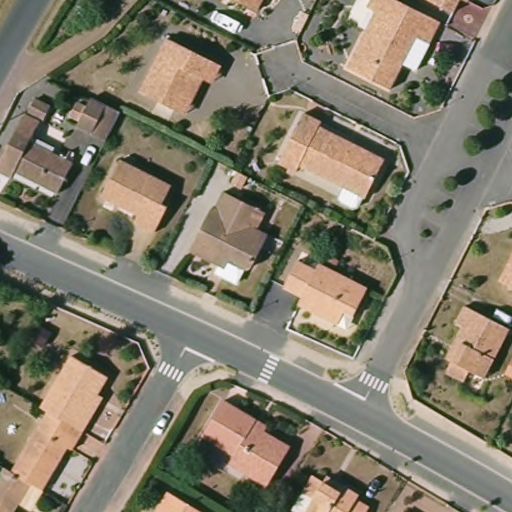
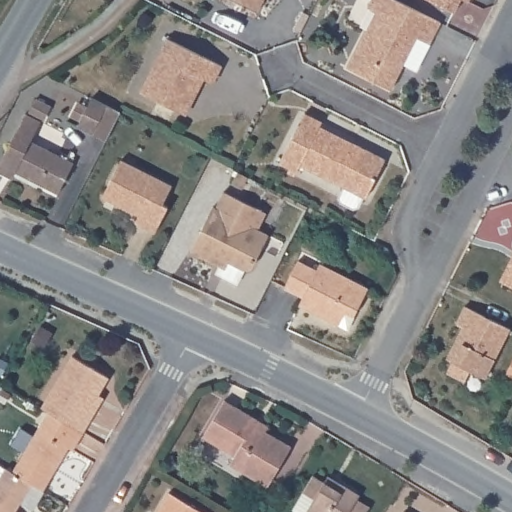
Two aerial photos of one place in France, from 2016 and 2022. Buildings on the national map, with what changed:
unchanged [(257,10),(237,0),(262,0),(257,10)]
unchanged [(403,60),(391,86),(348,65),(378,8),(368,2),(369,0),(404,0),(411,3),(442,20),(431,42),(419,69),(403,60)]
unchanged [(453,8),(434,0),(457,0),(453,8)]
unchanged [(168,105),(140,91),(168,35),(213,57),(225,63),(215,83),(203,77),(200,75),(181,112),(168,105)]
unchanged [(122,114),(107,142),(76,126),(90,98),(122,114)]
unchanged [(325,119),(321,125),(387,159),(366,198),(302,164),(298,171),(282,163),(309,112),(325,119)]
unchanged [(5,153),(25,117),(39,125),(29,143),(72,165),(55,198),(11,175),(20,161),(5,153)]
unchanged [(167,189),(158,208),(166,212),(152,238),(130,227),(132,220),(100,203),(118,164),(167,189)]
unchanged [(190,253),(205,221),(210,223),(225,194),(266,213),(258,230),(266,234),(260,247),(250,267),(250,268),(249,269),(247,270),(246,271),(245,271),(242,272),(236,284),(216,273),(219,267),(190,253)]
unchanged [(296,263),(313,272),(317,264),(365,288),(350,316),(342,313),(335,326),(295,306),(300,296),(283,287),(296,263)]
unchanged [(512,270),(512,290),(504,285),(512,270)]
unchanged [(457,338),(465,324),(458,321),(467,303),(511,327),(486,376),(471,367),(465,379),(448,370),(454,359),(448,356),(457,338)]
unchanged [(69,357),(103,377),(82,412),(87,416),(77,433),(44,412),(38,409),(69,357)]
unchanged [(262,490),(223,466),(228,457),(197,439),(220,400),(255,421),(266,428),(262,435),(286,449),(262,490)]
unchanged [(77,433),(80,435),(73,445),(69,443),(40,490),(28,483),(9,471),(44,412),(77,433)]
unchanged [(28,483),(13,507),(19,512),(0,512),(0,469),(1,467),(9,471),(28,483)]
unchanged [(370,504),(366,512),(313,512),(307,508),(304,512),(303,512),(292,505),(313,473),(323,480),(328,473),(343,482),(358,491),(356,495),(370,504)]
unchanged [(204,512),(151,512),(165,488),(204,512)]

